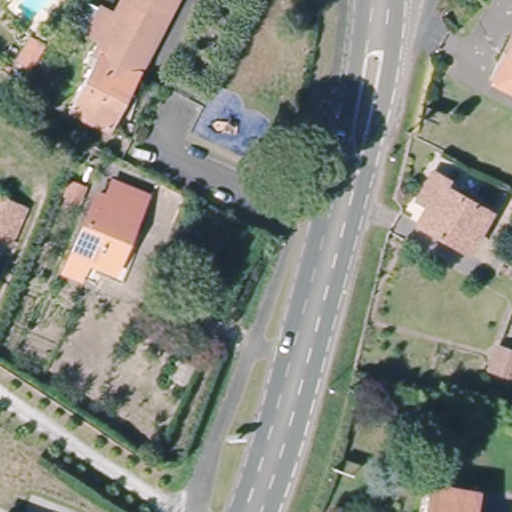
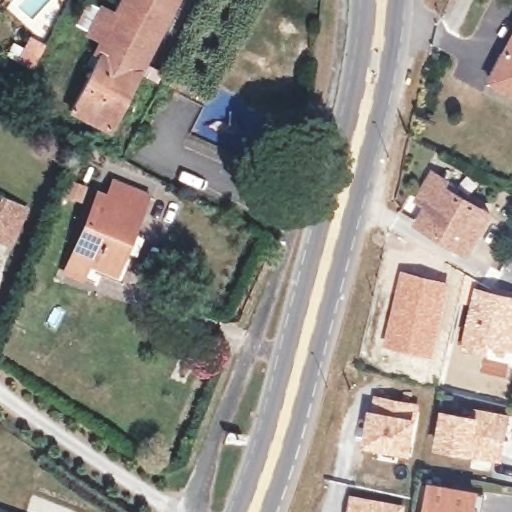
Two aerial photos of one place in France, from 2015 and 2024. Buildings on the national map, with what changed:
unchanged [(109,133),(69,114),(103,47),(87,39),(101,12),(116,21),(126,0),(177,0),(109,133)]
unchanged [(494,80),(512,46),(512,90),(494,80)]
unchanged [(490,215),(469,251),(418,224),(429,205),(418,200),(435,172),(452,182),(447,192),(490,215)]
unchanged [(102,256),(96,271),(77,263),(105,192),(114,196),(121,180),(152,193),(123,265),(102,256)]
unchanged [(26,214),(9,247),(0,244),(0,216),(6,204),(26,214)]
new [(400,269),(451,281),(434,358),(382,347),(400,269)]
new [(489,345),(487,357),(462,352),(463,341),(471,303),(460,302),(467,273),(492,291),(512,295),(512,350),(489,345)]
unchanged [(491,368),(498,345),(512,350),(512,359),(507,375),(491,368)]
new [(371,412),(374,413),(376,397),(417,403),(408,452),(365,445),(371,412)]
new [(445,412),(476,417),(477,410),(507,416),(500,457),(438,446),(445,412)]
unchanged [(477,492),(473,512),(428,512),(432,483),(477,492)]
new [(402,507),(402,512),(350,512),(353,497),(402,507)]

